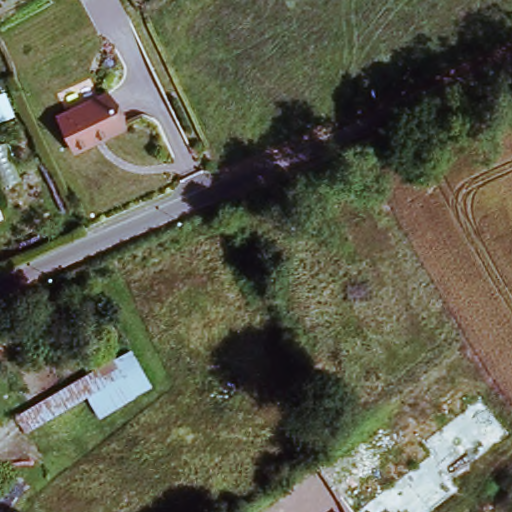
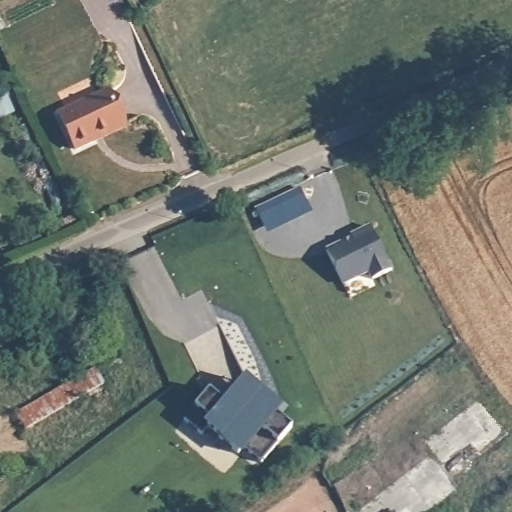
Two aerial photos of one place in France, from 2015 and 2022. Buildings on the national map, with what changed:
unchanged [(108,88),(125,121),(76,147),(59,114),(108,88)]
new [(17,120),(0,126),(0,96),(6,94),(17,120)]
new [(301,189),(313,214),(268,236),(256,209),(301,189)]
new [(355,237),(354,235),(374,227),(392,274),(371,281),(369,273),(341,283),(328,247),(355,237)]
unchanged [(16,412),(113,353),(131,346),(153,384),(135,396),(98,413),(86,392),(25,430),(16,412)]
new [(220,403),(236,381),(239,376),(273,401),(269,406),(269,407),(289,420),(261,460),(241,445),(236,452),(203,428),(198,436),(178,422),(201,389),(220,403)]

